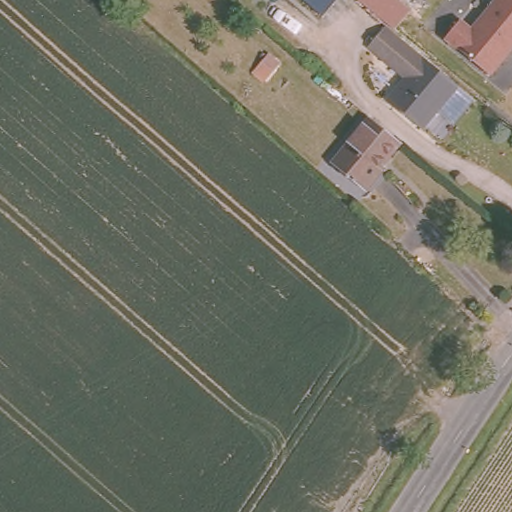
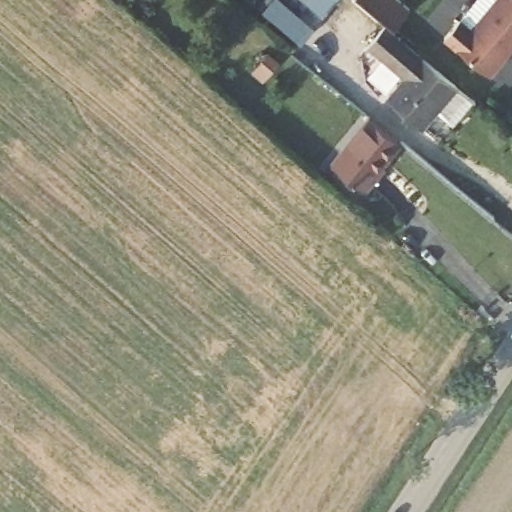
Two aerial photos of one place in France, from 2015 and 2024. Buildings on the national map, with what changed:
unchanged [(325,14),(308,0),(335,0),(325,14)]
unchanged [(408,8),(391,29),(357,0),(399,0),(408,8)]
unchanged [(512,50),(490,76),(443,37),(460,17),(470,28),(494,0),(512,0),(512,50)]
unchanged [(420,58),(402,80),(363,48),(382,26),(420,58)]
unchanged [(270,54),(282,64),(265,83),(252,72),(270,54)]
unchanged [(453,86),(420,127),(385,99),(402,80),(420,58),(453,86)]
unchanged [(370,188),(363,183),(335,159),(370,116),(398,139),(380,162),(386,167),(370,188)]

